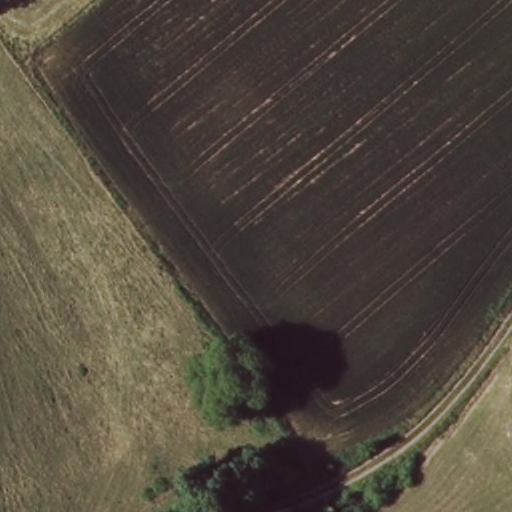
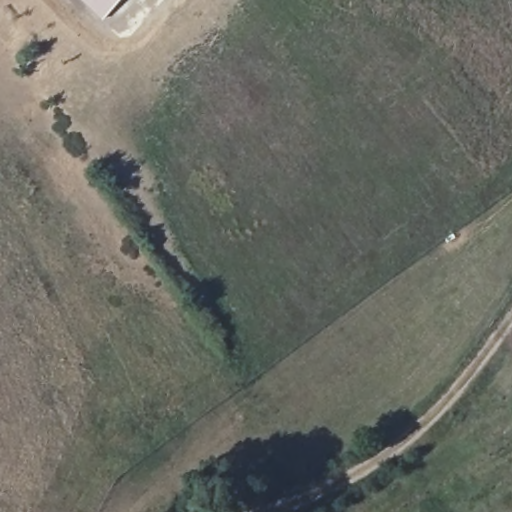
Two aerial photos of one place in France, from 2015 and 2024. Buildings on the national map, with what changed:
new [(103,22),(80,0),(123,0),(103,22)]

